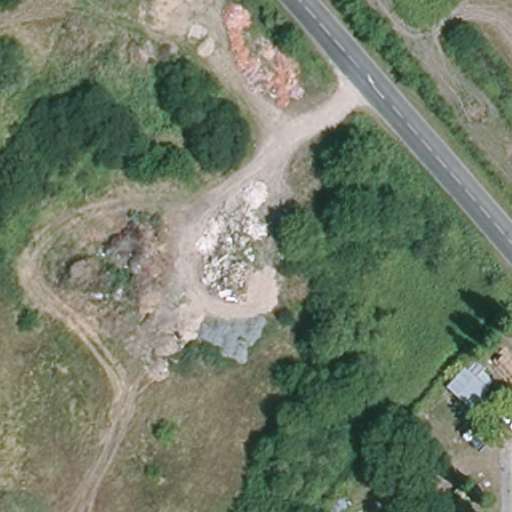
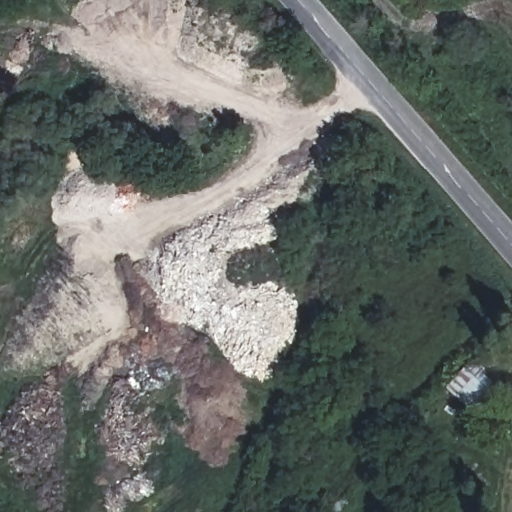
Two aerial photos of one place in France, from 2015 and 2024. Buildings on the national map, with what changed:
unchanged [(444,387),(464,370),(488,390),(472,411),(444,387)]

